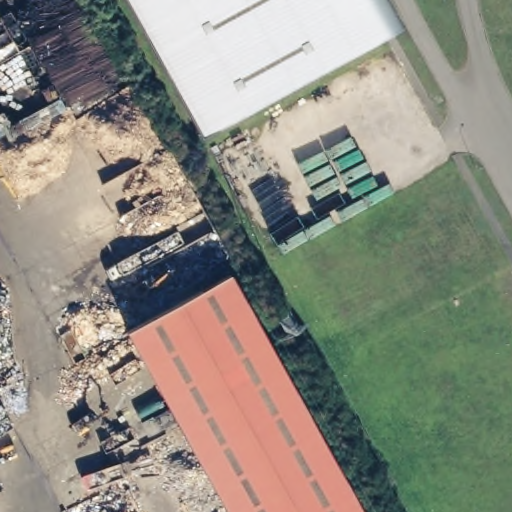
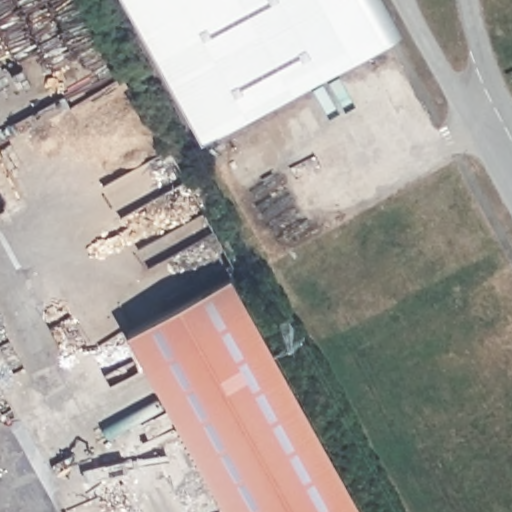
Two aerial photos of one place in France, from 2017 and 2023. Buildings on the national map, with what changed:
unchanged [(390,30),(205,132),(132,0),(373,0),(390,30)]
unchanged [(361,512),(228,512),(129,332),(230,275),(361,512)]

